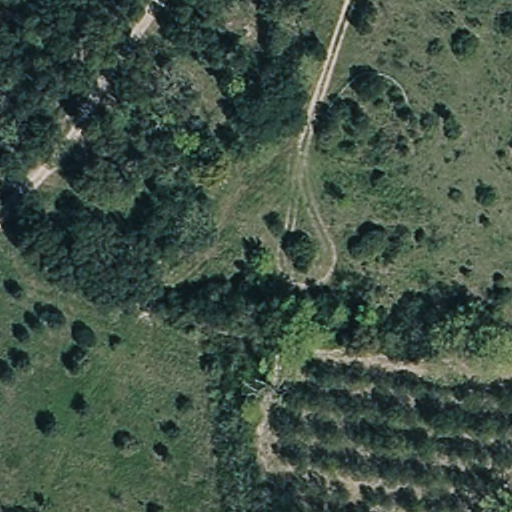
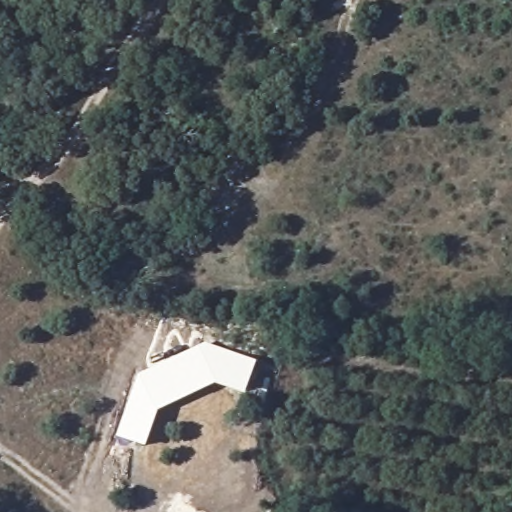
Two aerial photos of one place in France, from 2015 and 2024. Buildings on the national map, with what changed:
new [(138,376),(194,350),(205,345),(258,363),(246,397),(217,387),(159,413),(147,448),(118,438),(138,376)]

